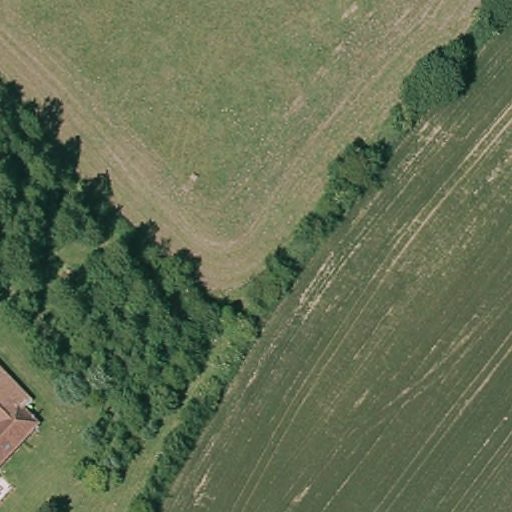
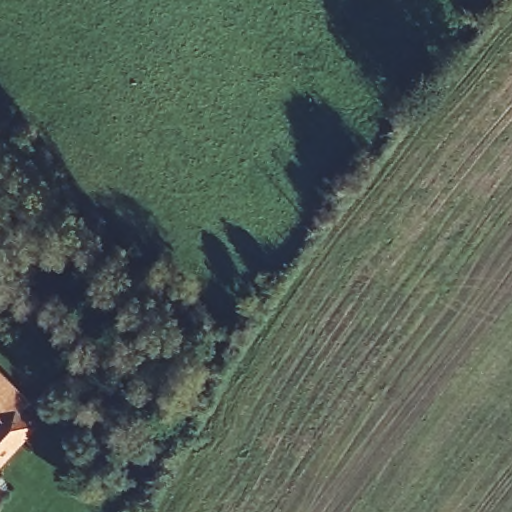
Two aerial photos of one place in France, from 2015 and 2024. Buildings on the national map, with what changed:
unchanged [(22,405),(30,412),(37,418),(0,461),(0,366),(32,395),(22,405)]

